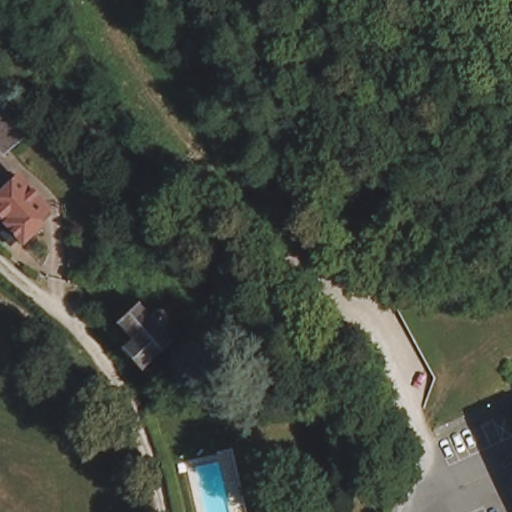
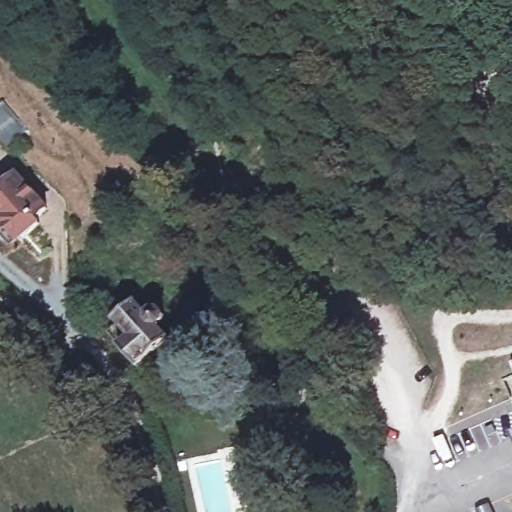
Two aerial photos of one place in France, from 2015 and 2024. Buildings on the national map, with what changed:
unchanged [(5,104),(30,133),(12,148),(6,154),(0,146),(0,108),(5,104)]
unchanged [(17,177),(47,208),(35,217),(40,222),(20,239),(0,218),(0,191),(17,177)]
unchanged [(117,344),(108,319),(145,295),(180,339),(135,368),(117,344)]

